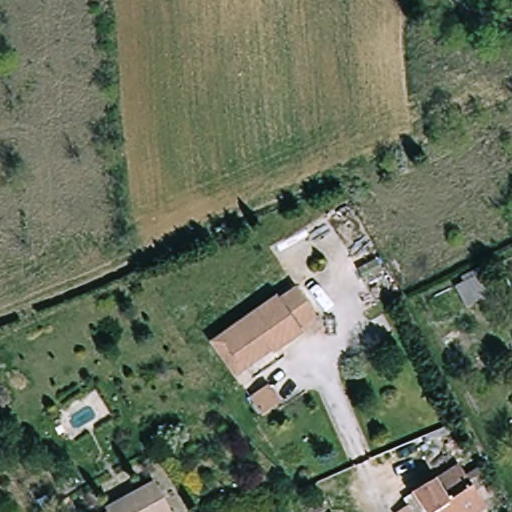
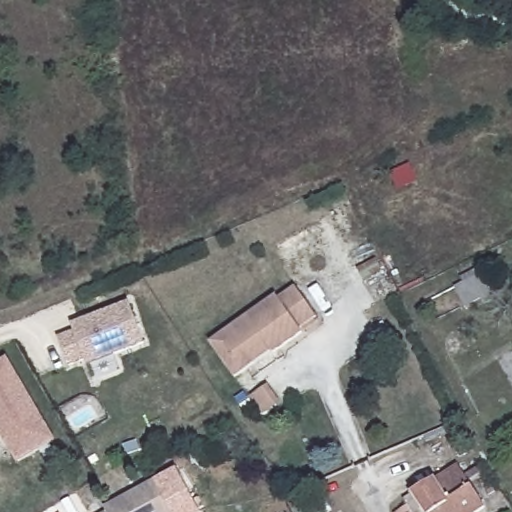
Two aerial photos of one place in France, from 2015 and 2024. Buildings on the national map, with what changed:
unchanged [(479,277),(488,295),(465,307),(455,289),(479,277)]
unchanged [(210,343),(218,337),(275,297),(278,301),(295,290),(315,320),(298,331),(300,335),(272,355),(270,352),(233,378),(210,343)]
new [(74,330),(73,326),(80,323),(130,302),(146,342),(89,367),(87,360),(70,367),(60,340),(75,333),(74,330)]
new [(57,442),(18,465),(0,435),(0,360),(7,356),(57,442)]
unchanged [(273,409),(260,417),(247,400),(261,390),(273,409)]
unchanged [(418,493),(460,465),(490,508),(485,512),(403,512),(422,500),(418,493)]
unchanged [(100,505),(147,477),(166,512),(99,512),(102,510),(100,505)]

